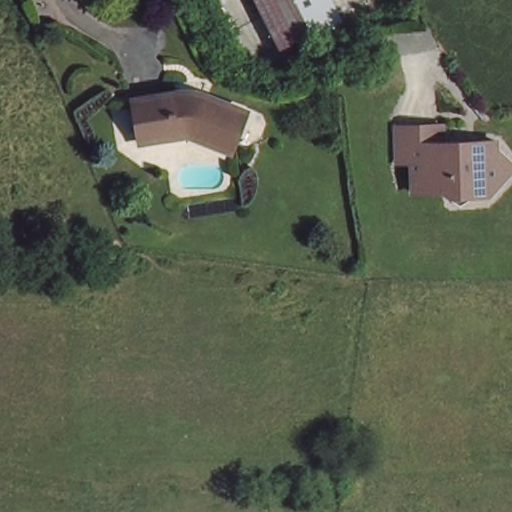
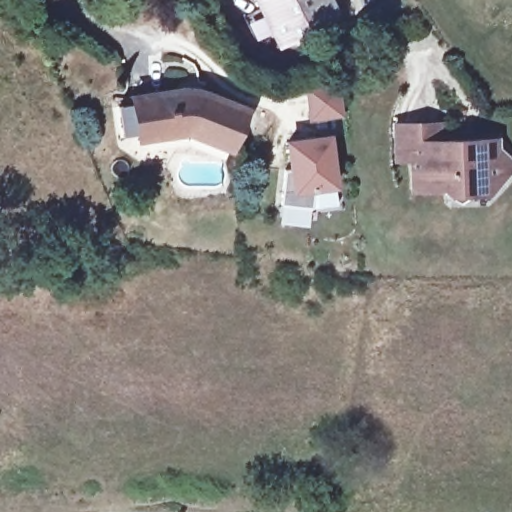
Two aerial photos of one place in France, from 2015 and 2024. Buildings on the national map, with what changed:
unchanged [(340,15),(288,43),(280,47),(256,0),(332,0),(340,15)]
unchanged [(186,88),(197,92),(244,106),(229,150),(187,136),(139,143),(135,124),(132,97),(186,88)]
unchanged [(489,186),(449,188),(443,183),(412,184),(411,153),(396,153),(395,119),(410,118),(442,117),(443,134),(496,133),(497,142),(505,149),(512,157),(512,162),(496,179),(489,186)]
new [(337,188),(314,191),(313,209),(281,204),(286,171),(289,170),(284,139),(329,132),(337,188)]

